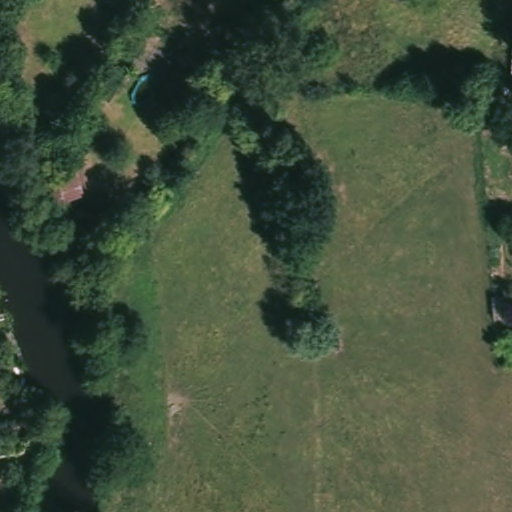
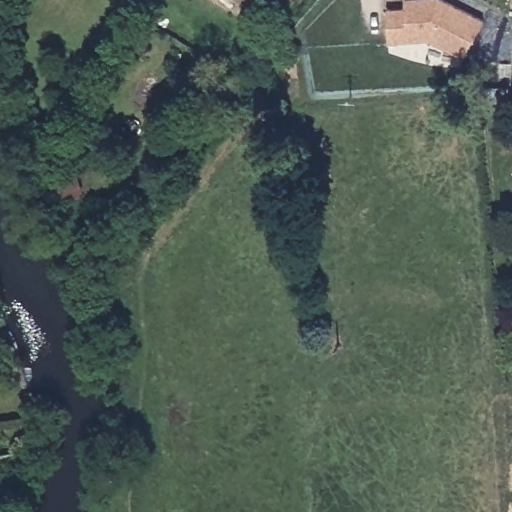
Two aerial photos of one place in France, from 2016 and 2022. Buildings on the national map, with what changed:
new [(441,0),(484,22),(465,60),(429,41),(389,44),(388,11),(406,9),(406,0),(441,0)]

